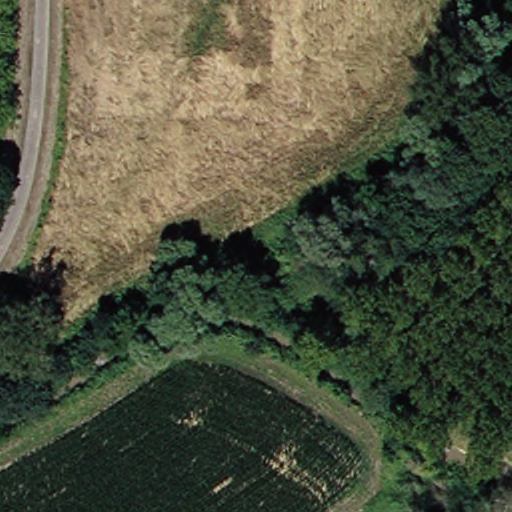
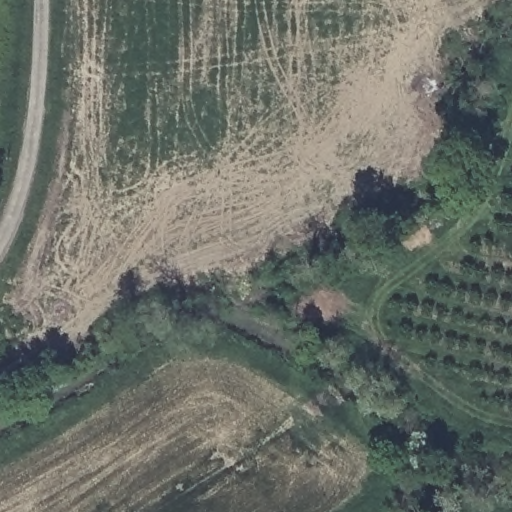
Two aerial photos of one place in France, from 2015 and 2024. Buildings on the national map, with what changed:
[]

